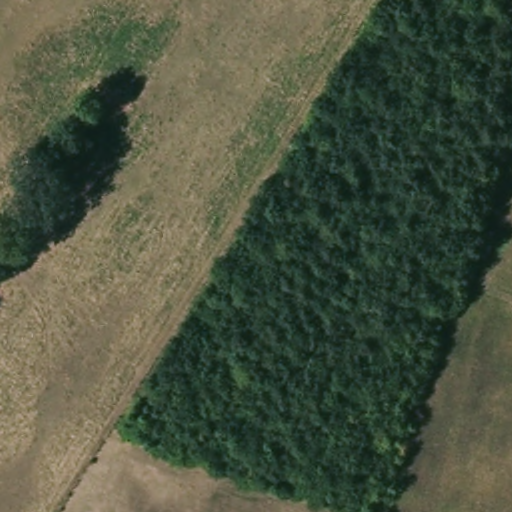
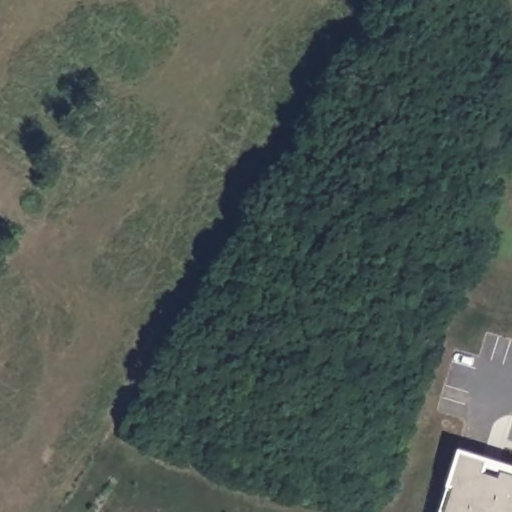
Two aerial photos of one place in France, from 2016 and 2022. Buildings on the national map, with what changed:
new [(512,465),(512,512),(438,512),(458,447),(512,465)]

